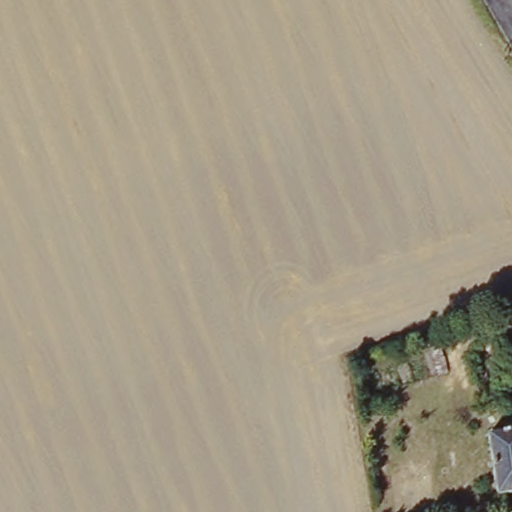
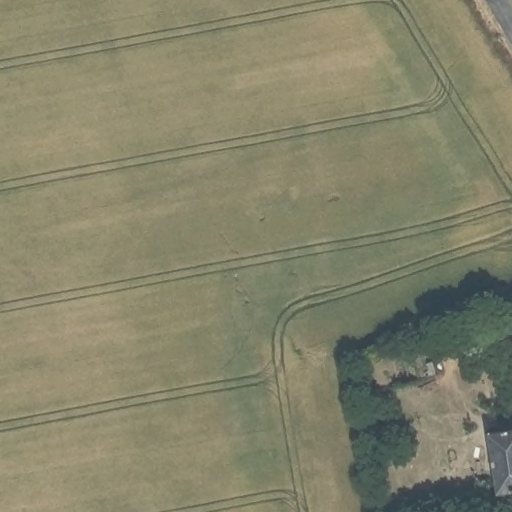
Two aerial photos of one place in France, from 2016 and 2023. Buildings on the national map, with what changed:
unchanged [(500,497),(490,438),(512,433),(512,495),(500,497)]

